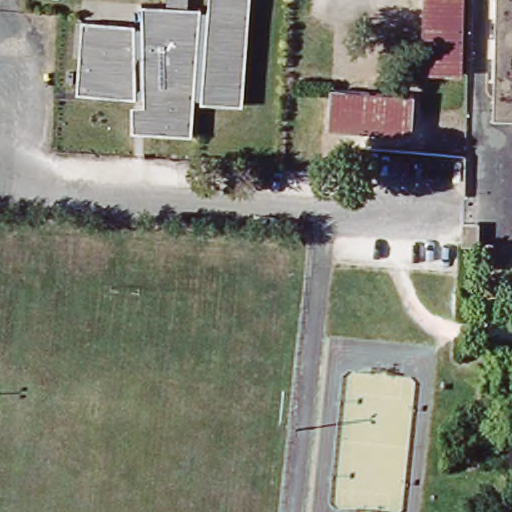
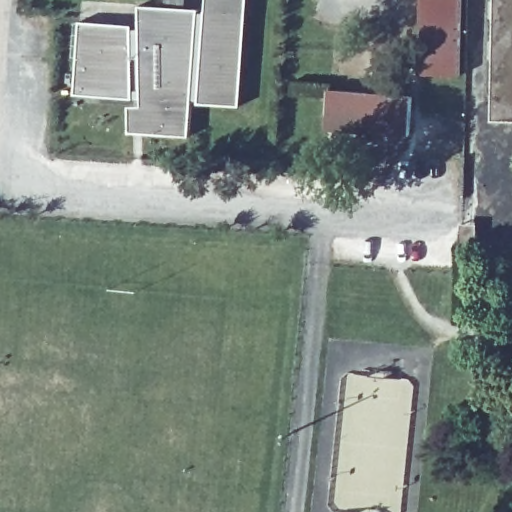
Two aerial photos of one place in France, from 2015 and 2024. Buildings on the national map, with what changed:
unchanged [(76,93),(81,20),(141,24),(143,4),(168,6),(169,0),(187,0),(187,7),(207,8),(249,11),(242,105),(202,101),(201,99),(194,98),(191,135),(151,132),(132,131),(134,97),(76,93)]
unchanged [(250,0),(249,11),(207,8),(208,0),(250,0)]
unchanged [(420,81),(423,0),(458,0),(454,82),(420,81)]
unchanged [(494,0),(512,0),(512,120),(488,118),(494,0)]
unchanged [(331,90),(416,95),(413,132),(329,127),(331,90)]
unchanged [(466,247),(467,230),(483,232),(482,248),(466,247)]

